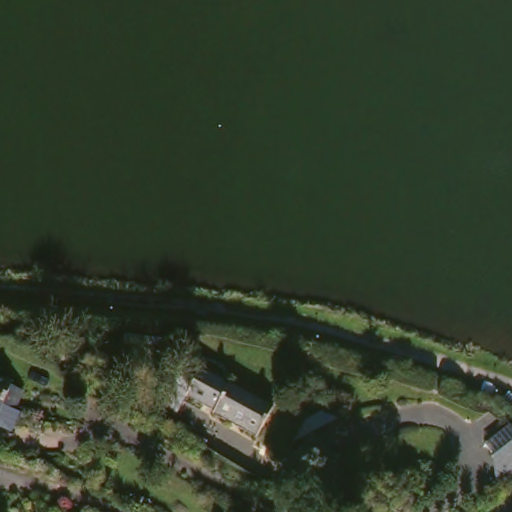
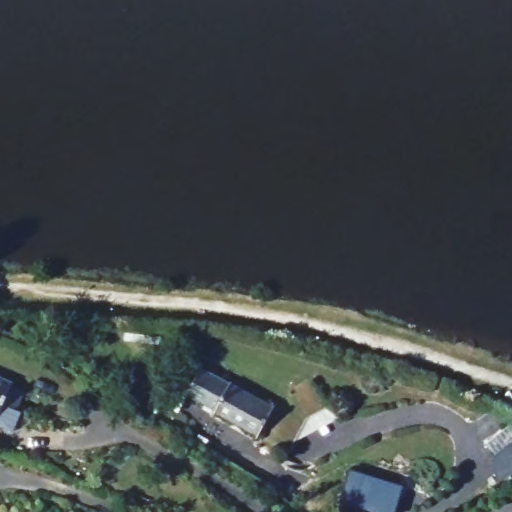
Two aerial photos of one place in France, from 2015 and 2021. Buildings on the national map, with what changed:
new [(283,359),(303,393),(286,403),(266,369),(283,359)]
unchanged [(211,365),(283,402),(265,433),(193,397),(211,365)]
unchanged [(31,390),(25,410),(13,406),(9,416),(0,412),(0,377),(31,390)]
unchanged [(512,410),(512,418),(508,412),(512,410)]
unchanged [(512,479),(502,486),(490,440),(512,425),(512,479)]
new [(350,471),(402,489),(394,512),(369,512),(339,502),(350,471)]

